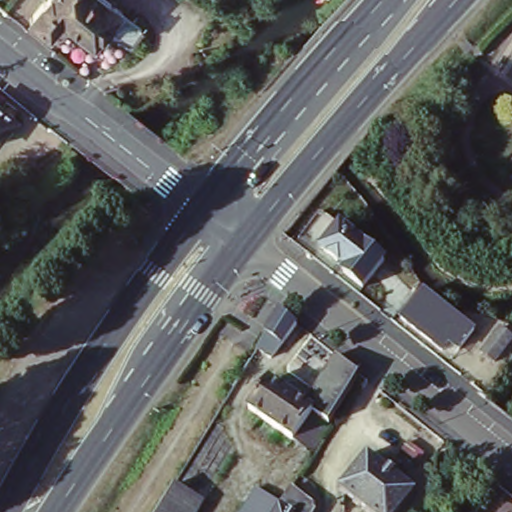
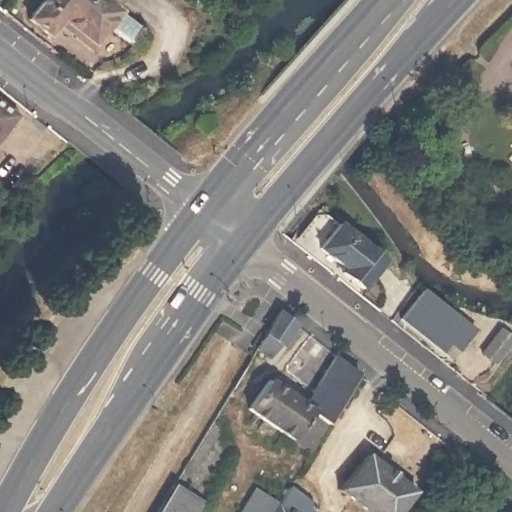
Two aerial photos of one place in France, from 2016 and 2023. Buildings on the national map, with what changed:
unchanged [(138,34),(125,49),(104,32),(90,50),(59,26),(45,41),(26,26),(46,0),(95,0),(138,34)]
unchanged [(0,138),(0,110),(14,121),(0,138)]
unchanged [(335,216),(401,268),(374,301),(309,249),(335,216)]
unchanged [(476,332),(461,350),(452,343),(444,352),(402,319),(423,291),(476,332)]
unchanged [(300,326),(273,363),(258,352),(282,312),(300,326)]
unchanged [(512,339),(512,341),(496,365),(480,353),(498,328),(512,339)]
unchanged [(331,416),(324,428),(311,455),(249,412),(267,383),(303,406),(335,358),(358,376),(331,416)]
unchanged [(402,512),(362,512),(339,494),(368,455),(417,493),(402,512)]
unchanged [(270,512),(235,512),(259,473),(284,490),(283,493),(270,512)]
unchanged [(194,512),(155,512),(170,488),(198,505),(194,512)]
unchanged [(309,510),(308,512),(270,512),(283,493),(309,510)]
unchanged [(476,512),(459,512),(466,496),(480,502),(476,512)]
unchanged [(509,512),(512,508),(512,509),(512,512),(509,512)]

